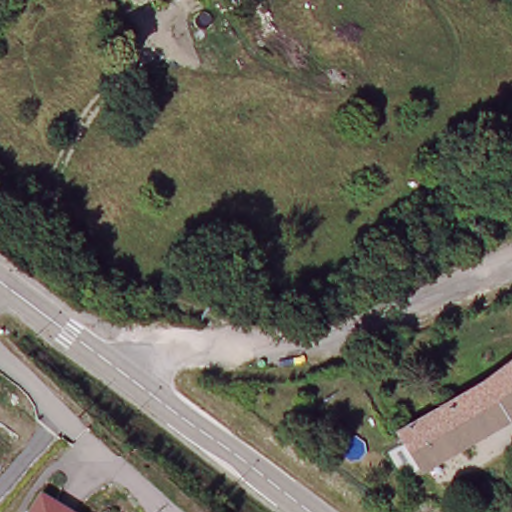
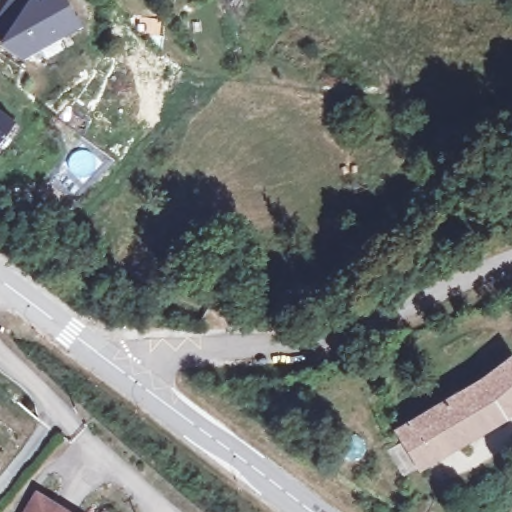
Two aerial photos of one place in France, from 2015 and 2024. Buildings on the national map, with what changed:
new [(15,0),(29,0),(33,2),(40,7),(52,0),(62,0),(77,25),(58,36),(59,39),(23,60),(3,48),(5,45),(0,42),(0,23),(14,0),(15,0)]
new [(13,119),(0,135),(0,109),(13,119)]
unchanged [(395,431),(483,382),(512,354),(512,406),(504,414),(414,462),(395,431)]
unchanged [(57,512),(24,512),(34,496),(57,512)]

